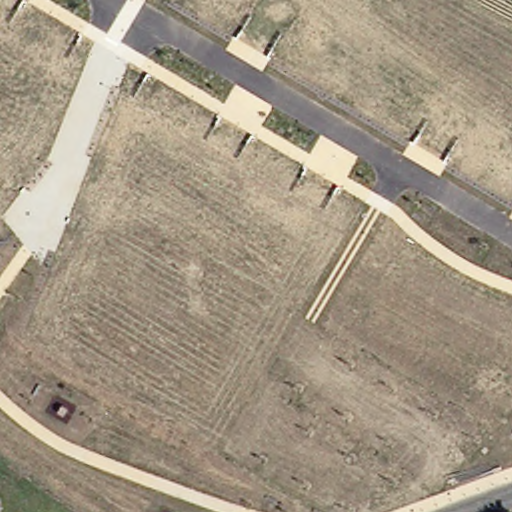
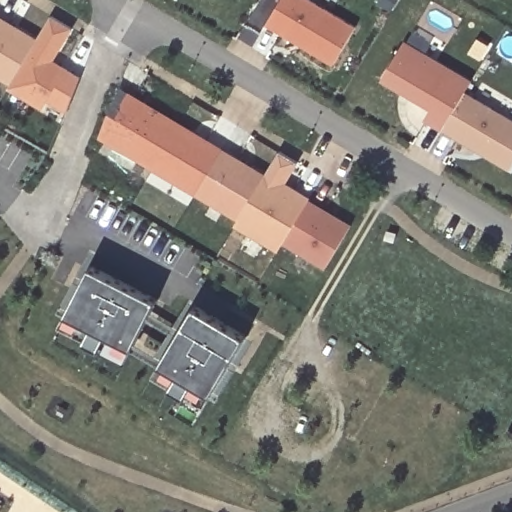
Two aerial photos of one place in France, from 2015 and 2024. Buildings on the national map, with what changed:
new [(279,0),(311,0),(355,26),(333,64),(265,23),(279,0)]
new [(55,61),(79,75),(65,110),(45,99),(40,108),(7,88),(50,14),(72,28),(55,61)]
new [(9,85),(0,80),(0,16),(37,37),(9,85)]
new [(381,78),(403,41),(470,81),(463,92),(442,128),(424,118),(430,107),(408,94),(400,89),(381,78)]
new [(463,92),(512,121),(512,163),(509,168),(442,128),(463,92)]
new [(106,111),(115,115),(126,93),(263,176),(237,218),(99,136),(106,111)]
new [(263,176),(279,149),(300,162),(287,182),(312,195),(307,203),(304,201),(280,243),(283,245),(279,252),(233,225),(237,218),(263,176)]
new [(304,201),(347,227),(323,268),(280,243),(304,201)]
new [(134,347),(129,359),(62,325),(68,313),(92,267),(158,297),(134,347)]
new [(195,305),(248,335),(213,393),(207,404),(156,374),(161,363),(195,305)]

